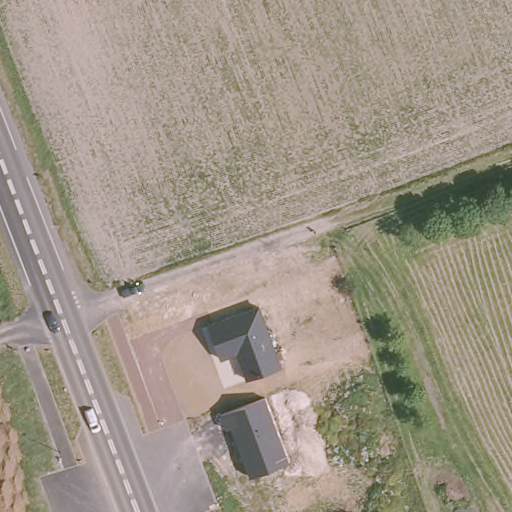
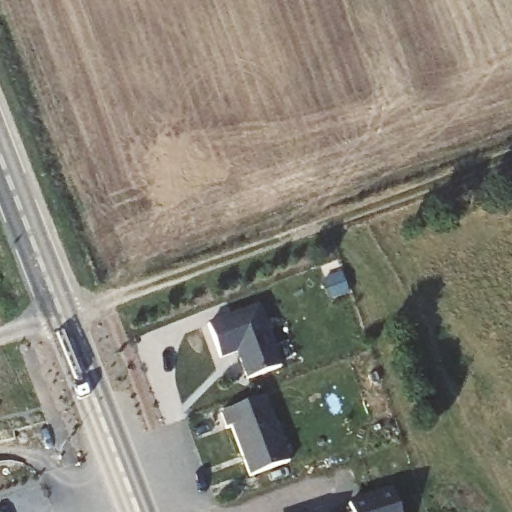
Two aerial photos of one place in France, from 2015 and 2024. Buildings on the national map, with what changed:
unchanged [(282,366),(247,378),(238,353),(222,360),(209,325),(258,306),(282,366)]
unchanged [(289,460),(249,475),(227,412),(267,396),(289,460)]
new [(391,489),(399,512),(351,512),(347,502),(391,489)]

